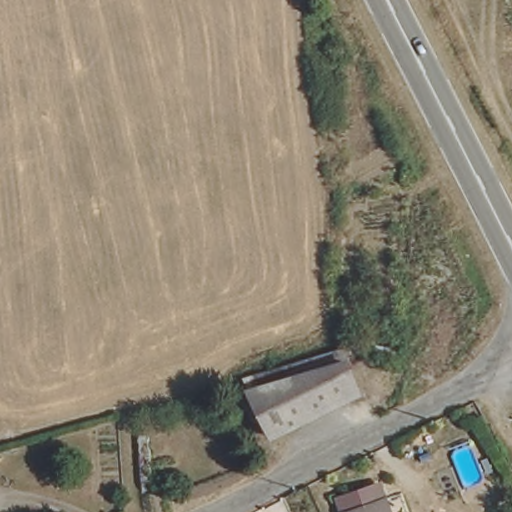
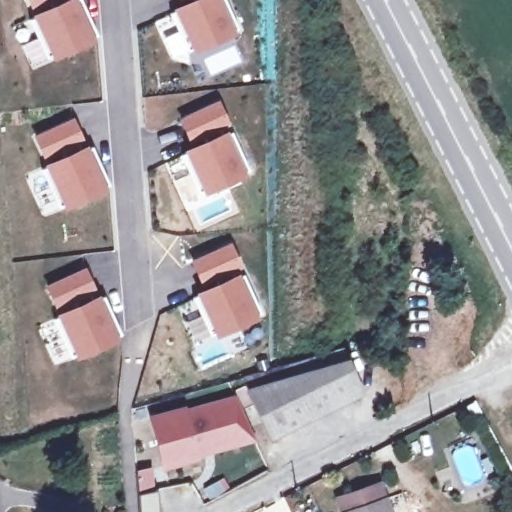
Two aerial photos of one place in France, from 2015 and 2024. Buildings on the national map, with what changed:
new [(26,0),(77,0),(97,40),(52,60),(32,17),(26,0)]
new [(171,13),(170,9),(178,5),(191,0),(228,0),(242,31),(190,54),(172,59),(155,21),(171,13)]
new [(178,5),(176,0),(191,0),(178,5)]
new [(220,98),(232,129),(190,146),(177,117),(220,98)]
new [(33,136),(73,116),(108,190),(64,210),(33,136)]
new [(190,146),(232,129),(250,172),(203,194),(182,150),(190,146)]
new [(231,241),(245,271),(202,288),(189,261),(231,241)]
new [(77,360),(55,313),(45,287),(84,267),(98,294),(120,340),(77,360)]
new [(202,288),(245,271),(263,313),(211,337),(191,293),(202,288)]
unchanged [(243,393),(347,357),(364,401),(269,442),(243,393)]
new [(235,394),(255,441),(200,457),(200,460),(162,471),(147,415),(235,394)]
unchanged [(378,496),(384,512),(387,510),(388,512),(344,512),(342,509),(378,496)]

